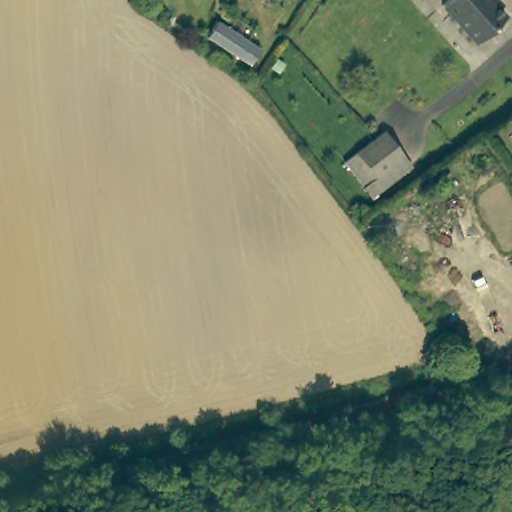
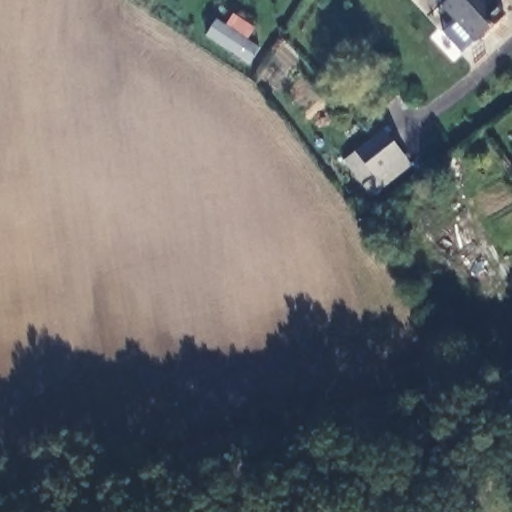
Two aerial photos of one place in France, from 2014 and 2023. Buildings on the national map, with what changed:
unchanged [(464,40),(438,0),(483,0),(495,22),(464,40)]
unchanged [(226,24),(233,14),(255,27),(249,38),(262,46),(250,64),(208,41),(218,19),(226,24)]
unchanged [(362,187),(345,162),(387,133),(403,160),(362,187)]

